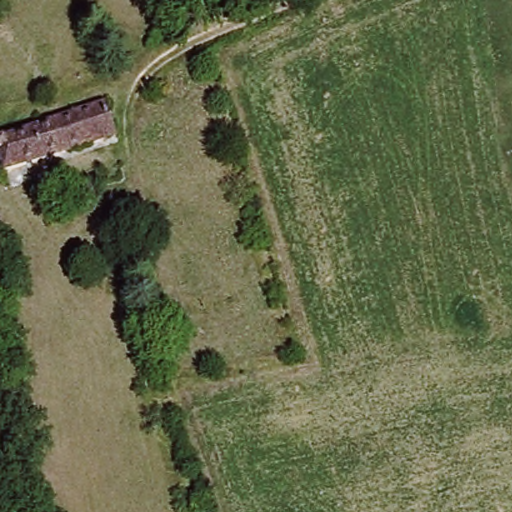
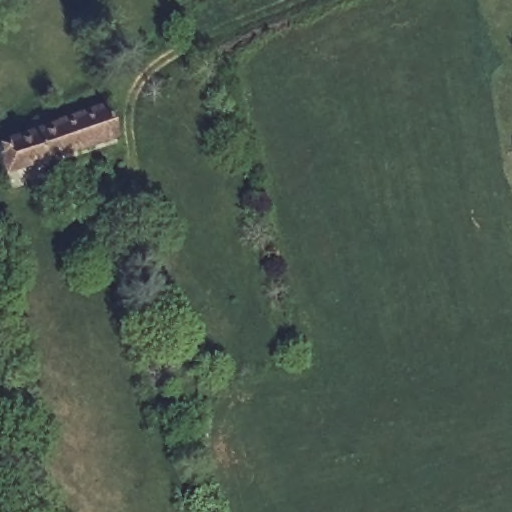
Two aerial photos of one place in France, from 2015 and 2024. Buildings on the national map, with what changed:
unchanged [(123,131),(0,170),(0,137),(111,99),(123,131)]

